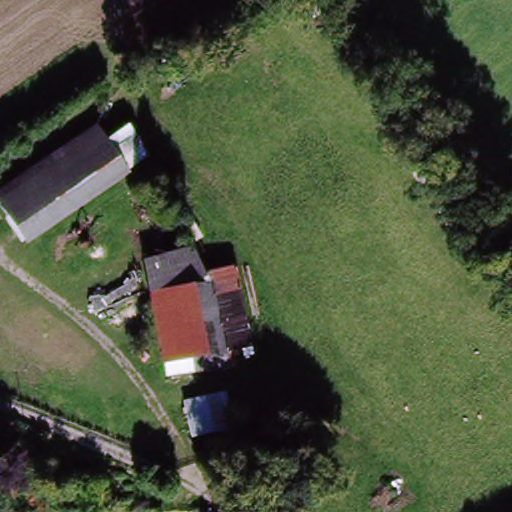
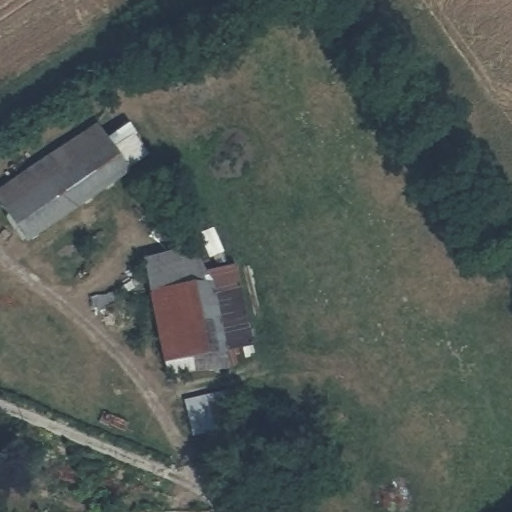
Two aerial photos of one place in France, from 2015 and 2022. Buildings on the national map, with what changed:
unchanged [(107,138),(129,123),(155,163),(135,178),(117,153),(107,138)]
unchanged [(0,191),(99,125),(107,138),(117,153),(11,222),(0,204),(0,191)]
unchanged [(117,153),(135,178),(28,249),(11,222),(117,153)]
unchanged [(188,252),(189,294),(202,294),(203,366),(161,367),(160,254),(188,252)]

